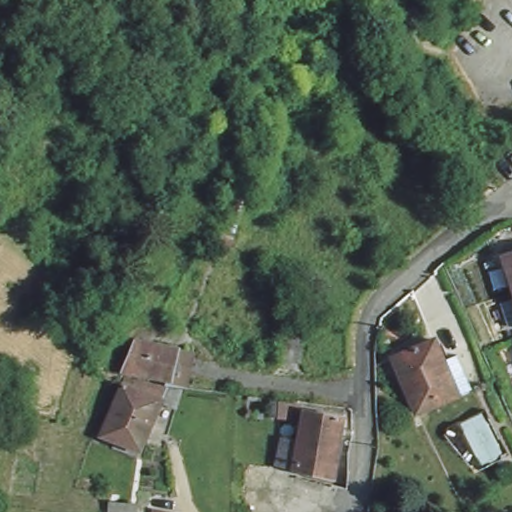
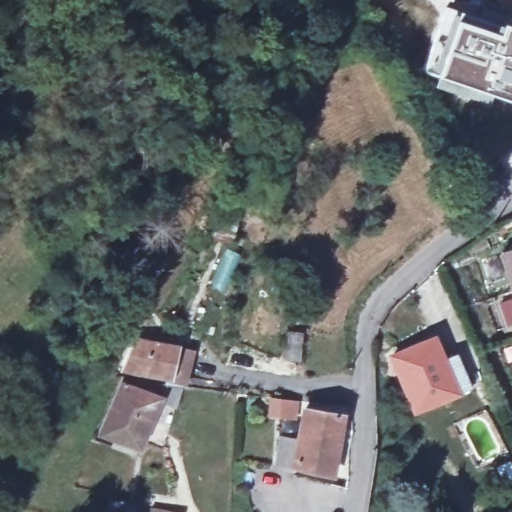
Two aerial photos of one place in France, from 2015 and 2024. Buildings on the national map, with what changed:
new [(440,0),(453,0),(453,2),(440,0)]
new [(467,15),(465,19),(499,32),(503,22),(512,25),(512,105),(456,87),(454,92),(435,86),(438,78),(424,72),(443,6),(467,15)]
unchanged [(496,244),(512,240),(512,296),(508,283),(496,244)]
unchanged [(300,363),(281,361),(285,331),(304,334),(300,363)]
unchanged [(413,411),(390,353),(429,334),(441,359),(450,356),(464,389),(413,411)]
unchanged [(182,347),(177,379),(118,368),(123,336),(182,347)]
unchanged [(131,445),(92,429),(114,375),(156,383),(131,445)]
unchanged [(301,423),(279,421),(279,402),(302,405),(301,423)]
unchanged [(287,440),(307,443),(311,413),(350,420),(340,481),(282,471),(287,440)]

